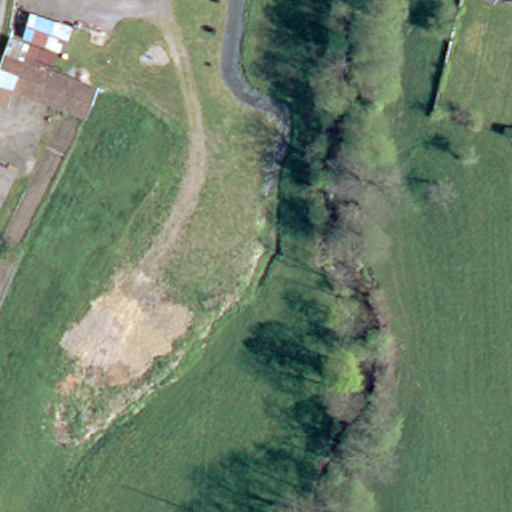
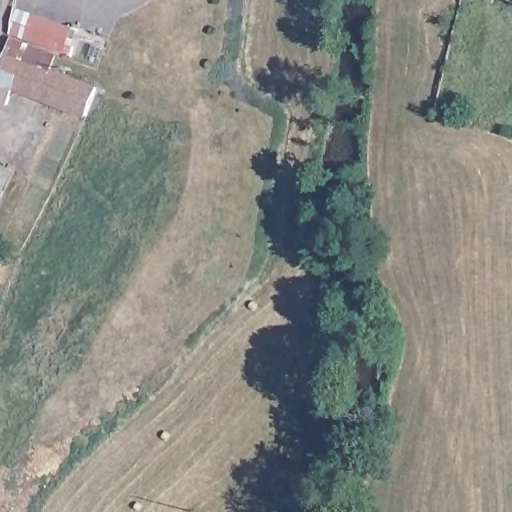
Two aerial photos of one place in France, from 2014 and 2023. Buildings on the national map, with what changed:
unchanged [(85,114),(10,91),(5,106),(0,105),(0,59),(1,57),(7,39),(52,54),(47,71),(97,87),(85,114)]
unchanged [(0,173),(0,164),(4,166),(0,173)]

